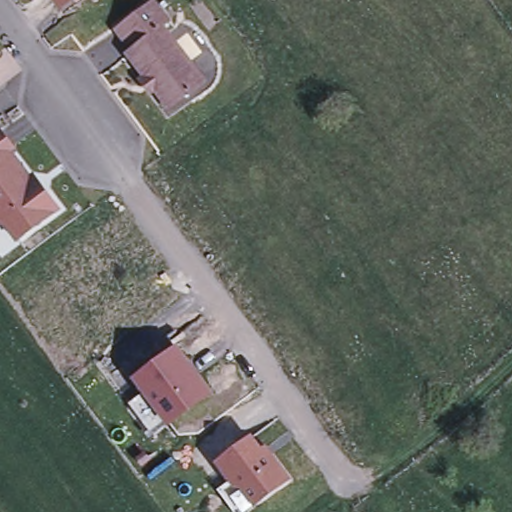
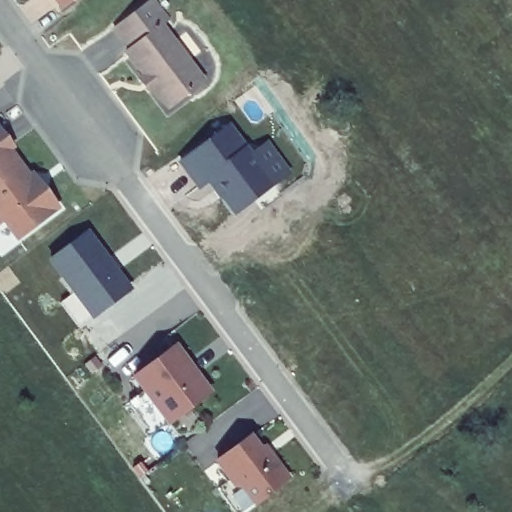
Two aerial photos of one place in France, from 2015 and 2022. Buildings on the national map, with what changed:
unchanged [(60,6),(55,0),(67,0),(60,6)]
unchanged [(138,85),(144,81),(125,56),(129,53),(113,32),(152,2),(168,25),(161,30),(202,86),(187,97),(167,112),(160,102),(153,93),(147,97),(138,85)]
new [(233,122),(255,151),(270,141),(290,172),(235,215),(208,181),(199,188),(180,162),(233,122)]
unchanged [(12,244),(0,227),(0,143),(7,152),(3,155),(25,185),(29,182),(38,195),(52,214),(12,244)]
new [(132,289),(78,327),(59,303),(72,295),(46,261),(87,230),(132,289)]
unchanged [(178,347),(213,395),(193,407),(197,413),(172,428),(167,421),(150,437),(127,401),(141,392),(135,381),(178,347)]
unchanged [(249,437),(257,446),(263,445),(290,481),(258,508),(241,485),(232,487),(217,461),(249,437)]

